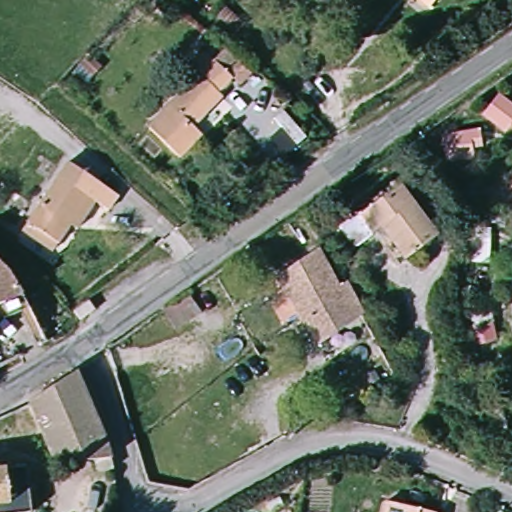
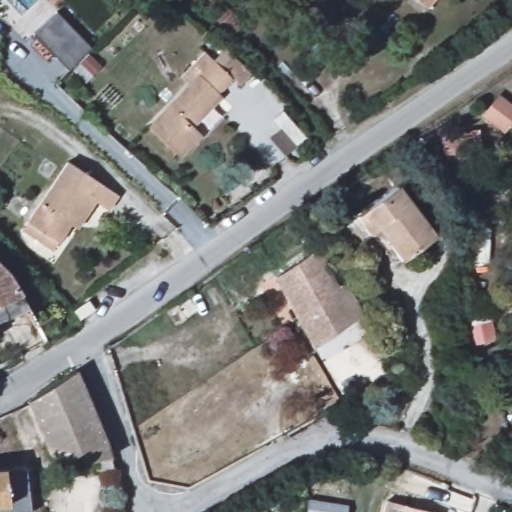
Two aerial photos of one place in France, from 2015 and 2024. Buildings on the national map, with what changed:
unchanged [(416,0),(429,0),(423,6),(416,0)]
new [(33,35),(55,13),(90,49),(83,57),(97,72),(83,85),(33,35)]
unchanged [(211,96),(215,102),(187,130),(196,140),(177,159),(146,126),(192,77),(184,71),(197,58),(222,84),(211,96)]
unchanged [(68,224),(58,236),(32,210),(70,159),(117,196),(104,211),(97,205),(87,218),(77,231),(68,224)]
unchanged [(370,227),(359,212),(401,184),(436,234),(404,256),(394,262),(370,227)]
unchanged [(333,283),(341,280),(359,315),(310,342),(274,281),(317,252),(333,283)]
unchanged [(22,303),(22,304),(10,307),(0,311),(0,271),(22,303)]
unchanged [(57,469),(24,408),(73,377),(108,460),(57,469)]
unchanged [(38,468),(43,512),(0,512),(0,471),(38,468)]
unchanged [(386,502),(431,512),(383,512),(386,502)]

